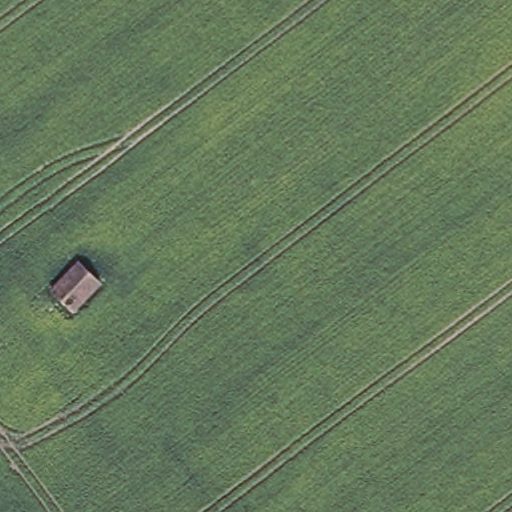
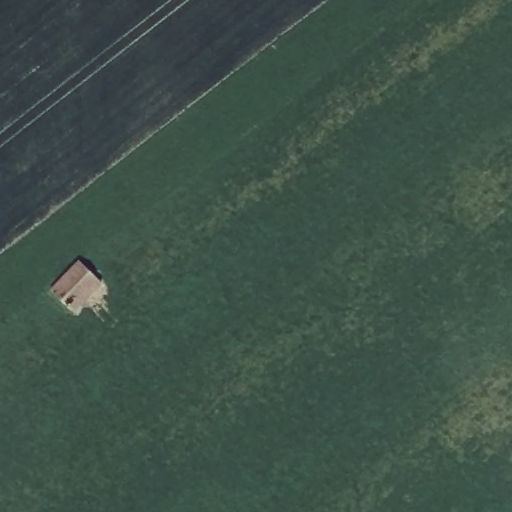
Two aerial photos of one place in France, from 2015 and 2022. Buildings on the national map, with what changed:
unchanged [(78,264),(98,283),(72,312),(51,292),(78,264)]

